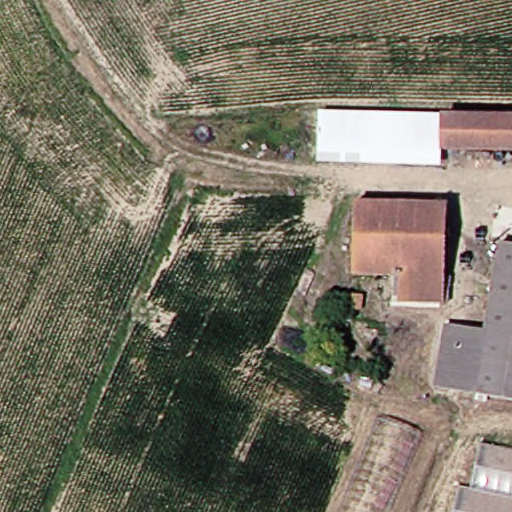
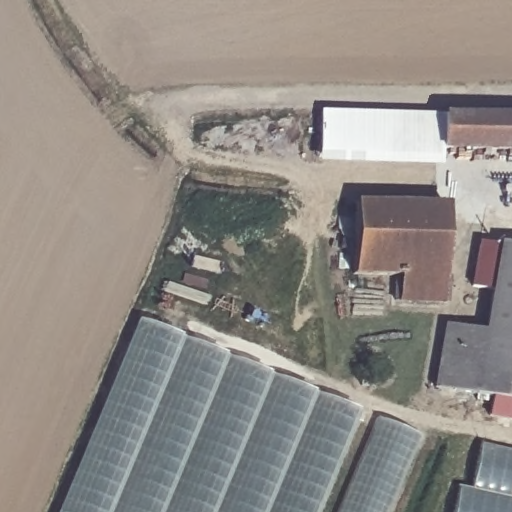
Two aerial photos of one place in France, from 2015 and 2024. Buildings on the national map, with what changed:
new [(434,117),(433,145),(441,146),(441,166),(318,161),(321,110),(434,117)]
unchanged [(433,145),(434,113),(512,118),(512,150),(433,145)]
unchanged [(450,222),(416,222),(409,269),(356,267),(357,200),(357,195),(451,198),(450,222)]
unchanged [(447,298),(405,296),(409,269),(416,222),(450,222),(447,298)]
unchanged [(491,242),(512,243),(512,395),(484,394),(487,329),(491,242)]
demolished [(351,315),(335,314),(337,287),(361,289),(360,305),(352,304),(351,315)]
new [(136,320),(360,412),(318,512),(56,512),(136,320)]
unchanged [(487,329),(484,394),(442,392),(445,327),(487,329)]
demolished [(402,419),(371,512),(315,512),(119,440),(157,333),(402,419)]
new [(487,417),(491,394),(512,396),(512,422),(487,417)]
new [(421,437),(389,512),(337,512),(376,419),(421,437)]
unchanged [(458,482),(472,484),(482,439),(512,446),(512,512),(451,512),(458,482)]

